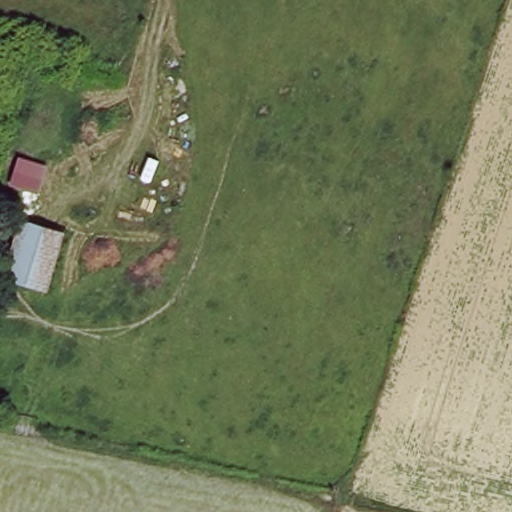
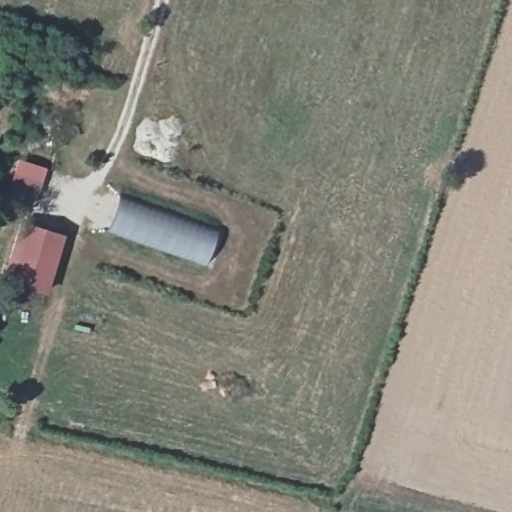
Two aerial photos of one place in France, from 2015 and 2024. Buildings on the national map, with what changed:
unchanged [(38,199),(9,190),(18,160),(46,168),(38,199)]
new [(122,193),(223,229),(210,268),(108,232),(122,193)]
unchanged [(47,298),(1,284),(18,224),(65,236),(47,298)]

